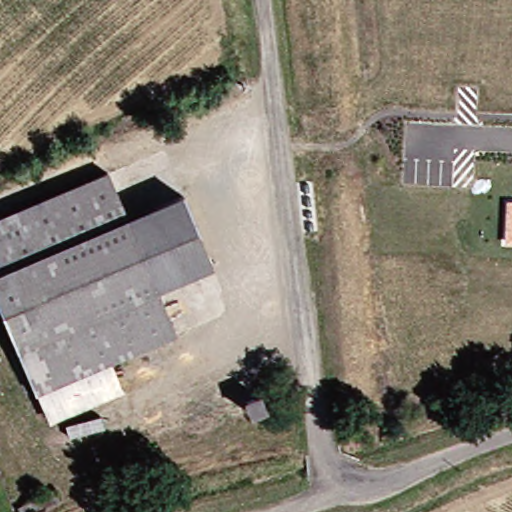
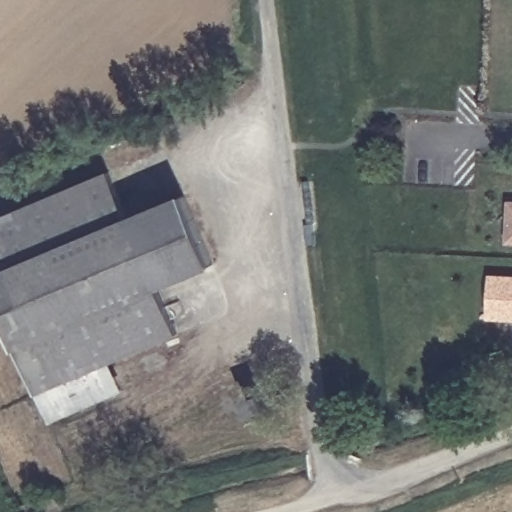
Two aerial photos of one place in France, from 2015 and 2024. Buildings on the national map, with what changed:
unchanged [(186,200),(213,268),(156,290),(175,337),(110,362),(40,388),(36,390),(0,301),(0,221),(113,175),(132,221),(186,200)]
unchanged [(505,243),(506,200),(512,200),(512,243),(505,243)]
new [(487,277),(512,279),(512,321),(485,320),(487,277)]
unchanged [(122,393),(52,420),(40,388),(110,362),(122,393)]
unchanged [(59,487),(64,498),(31,512),(23,512),(19,503),(59,487)]

